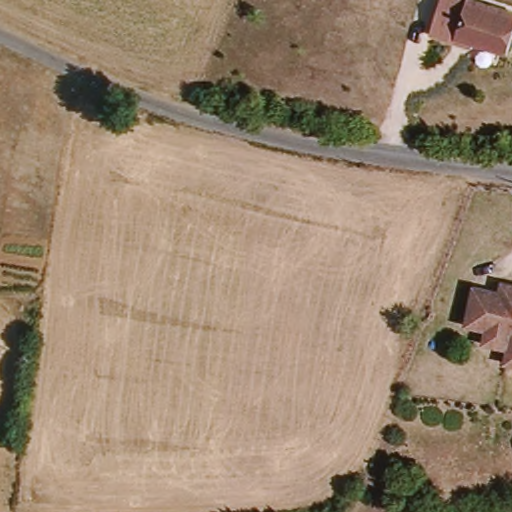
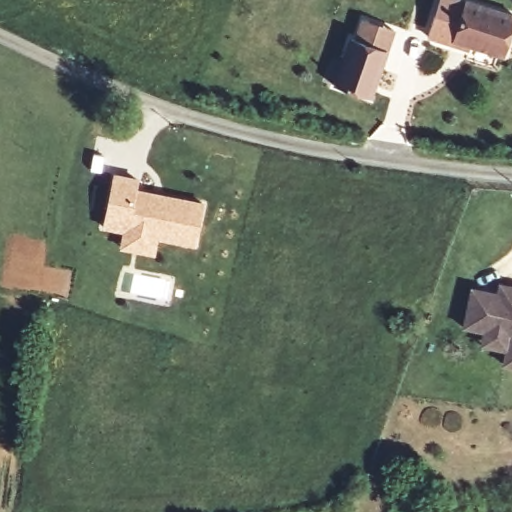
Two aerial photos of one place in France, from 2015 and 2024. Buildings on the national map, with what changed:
unchanged [(428,28),(435,5),(437,0),(486,0),(512,9),(512,28),(505,48),(470,36),(470,40),(453,35),(428,28)]
new [(333,85),(349,37),(355,39),(361,20),(395,31),(388,51),(372,99),(333,85)]
new [(195,248),(158,240),(155,257),(117,250),(121,234),(101,229),(112,174),(140,179),(138,190),(205,203),(195,248)]
unchanged [(503,363),(505,349),(481,344),(482,330),(462,328),(468,288),(495,292),(496,282),(508,284),(512,285),(512,364),(503,363)]

